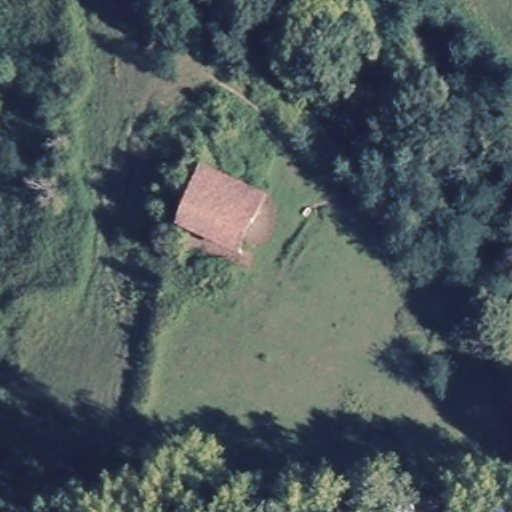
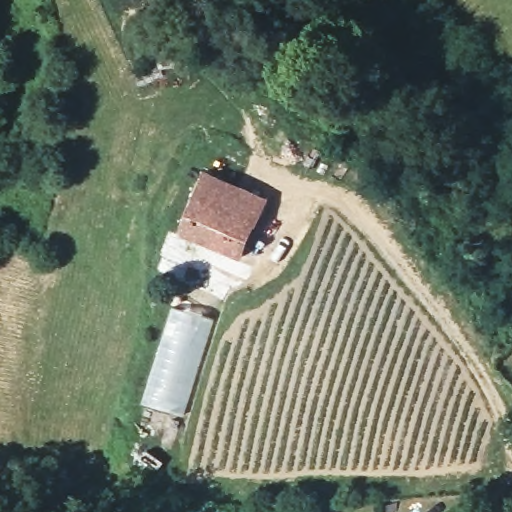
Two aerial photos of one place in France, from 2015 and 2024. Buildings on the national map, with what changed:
unchanged [(234,254),(177,229),(202,172),(265,200),(254,226),(241,256),(234,254)]
new [(170,306),(214,320),(183,417),(140,403),(170,306)]

